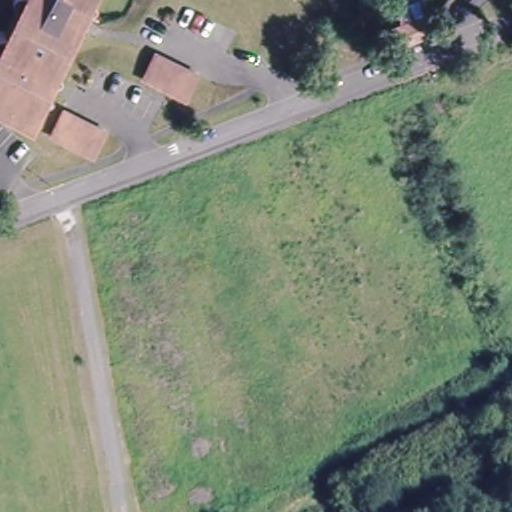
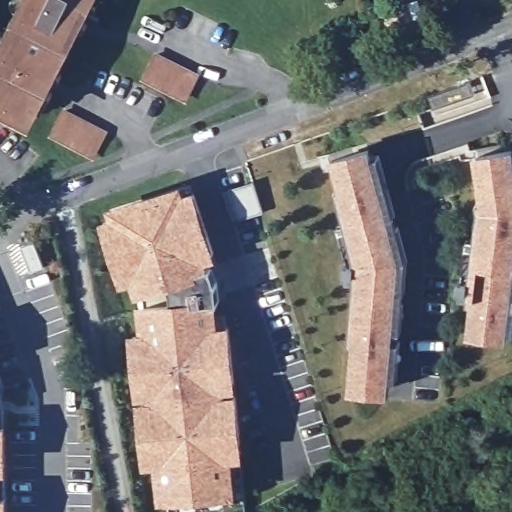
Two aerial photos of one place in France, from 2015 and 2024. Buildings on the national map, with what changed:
unchanged [(0,22),(6,9),(4,7),(3,5),(2,3),(2,1),(2,0),(86,0),(25,118),(0,105),(0,22)]
unchanged [(391,51),(384,37),(420,23),(427,40),(392,55),(391,51)]
unchanged [(188,81),(177,104),(140,84),(152,62),(188,81)]
unchanged [(97,137),(85,161),(48,141),(60,118),(97,137)]
new [(348,392),(352,342),(348,342),(353,267),(356,267),(335,191),(339,190),(330,158),(369,147),(400,262),(387,396),(348,392)]
new [(465,338),(469,306),(466,305),(467,297),(478,204),(480,203),(473,154),(512,148),(512,296),(505,343),(465,338)]
new [(127,334),(138,333),(135,305),(171,301),(168,288),(133,298),(129,286),(119,289),(98,223),(108,220),(105,209),(181,183),(184,192),(194,188),(217,258),(208,262),(215,280),(220,324),(230,324),(244,459),(233,460),(236,496),(225,497),(225,505),(169,511),(168,503),(157,504),(154,468),(142,469),(127,334)]
new [(8,471),(0,471),(0,423),(9,424),(8,471)]
new [(10,512),(0,512),(0,494),(10,495),(10,512)]

